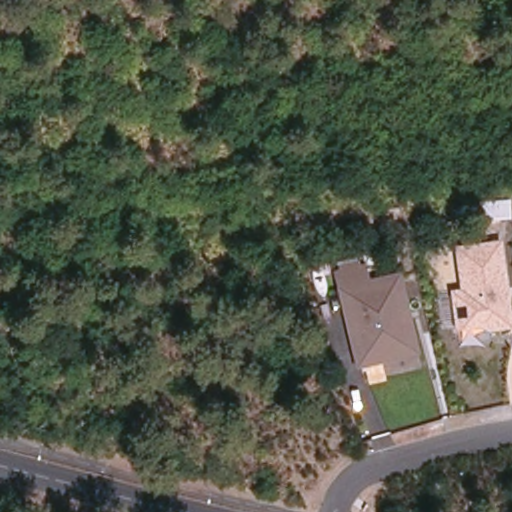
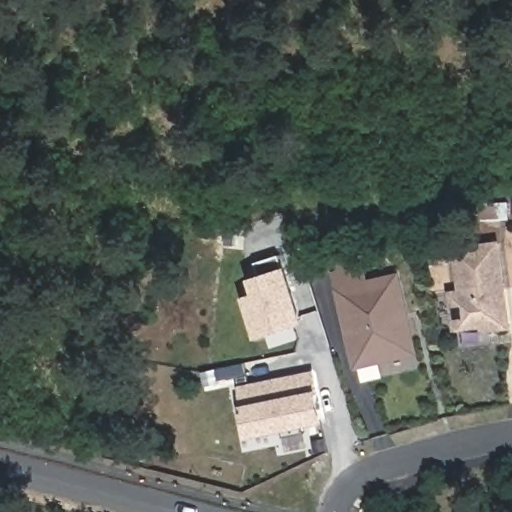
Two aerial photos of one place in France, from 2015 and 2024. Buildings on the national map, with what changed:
unchanged [(512,313),(512,328),(489,332),(480,327),(455,331),(448,290),(461,288),(454,246),(502,239),(512,313)]
new [(262,294),(257,279),(264,277),(259,261),(283,253),(305,318),(263,332),(252,298),(262,294)]
unchanged [(418,354),(356,369),(336,286),(340,285),(336,269),(364,263),(368,278),(400,271),(418,354)]
new [(315,371),(325,415),(306,419),(308,429),(288,434),(285,424),(254,430),(245,386),(315,371)]

